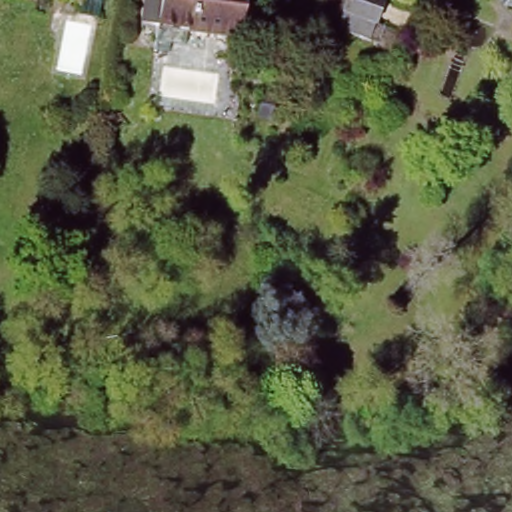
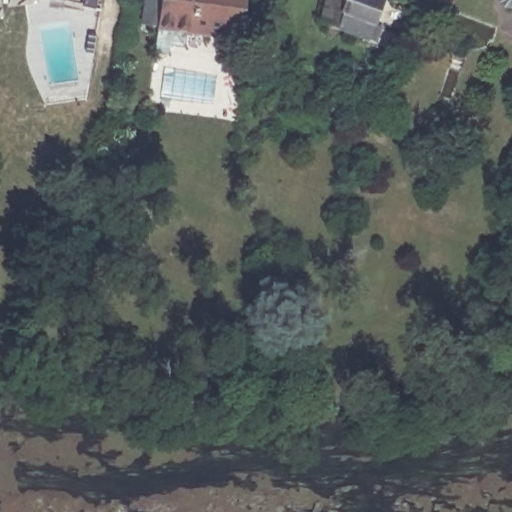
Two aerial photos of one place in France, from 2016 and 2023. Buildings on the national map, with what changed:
unchanged [(241,0),(236,39),(155,29),(158,0),(241,0)]
unchanged [(349,0),(336,30),(321,23),(326,0),(349,0)]
unchanged [(379,0),(376,5),(380,7),(365,44),(336,30),(349,0),(379,0)]
unchanged [(510,15),(505,9),(506,0),(512,0),(512,15),(510,15)]
unchanged [(251,402),(252,372),(266,372),(265,402),(251,402)]

